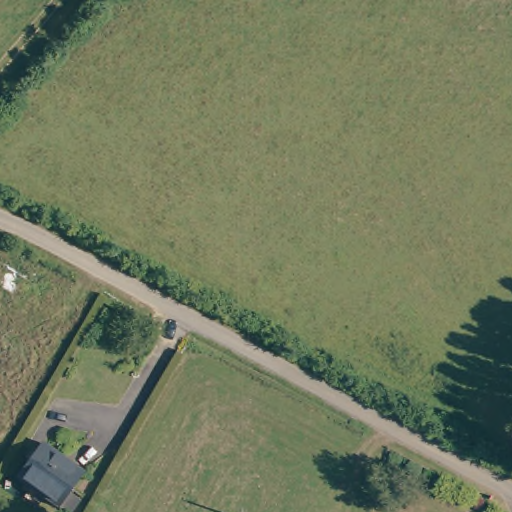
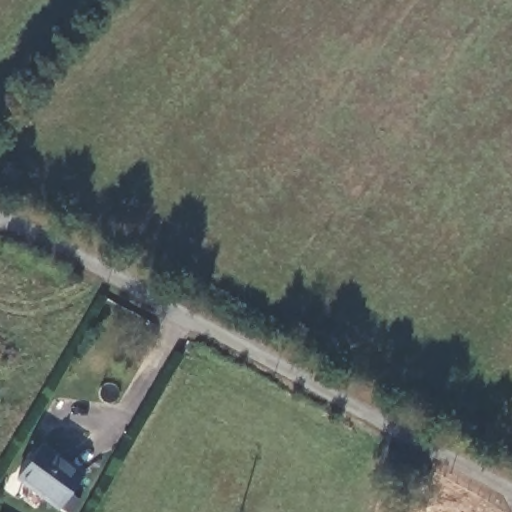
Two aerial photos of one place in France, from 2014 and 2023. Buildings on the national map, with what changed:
unchanged [(86,472),(64,504),(22,475),(45,442),(86,472)]

